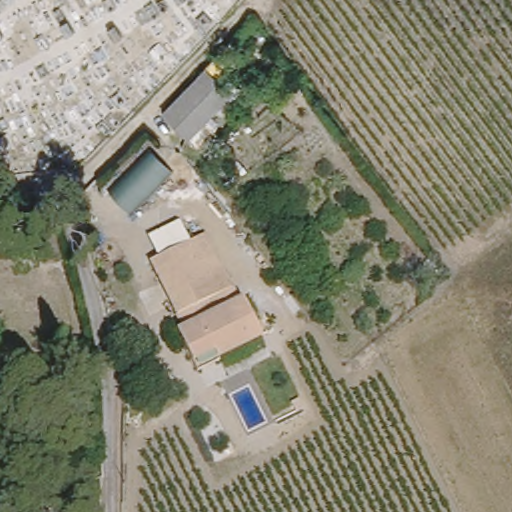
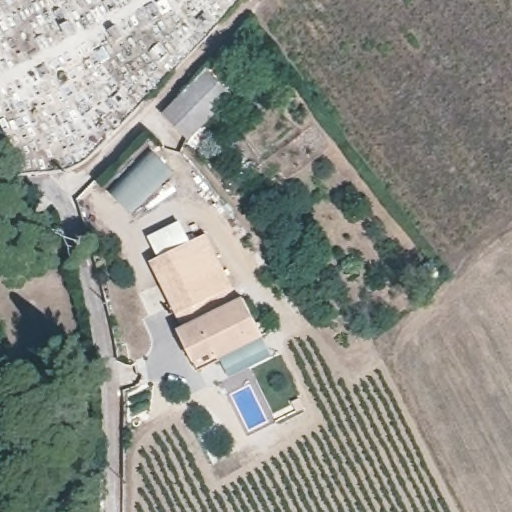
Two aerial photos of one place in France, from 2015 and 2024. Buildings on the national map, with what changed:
unchanged [(196,140),(167,114),(211,68),(239,96),(215,120),(226,130),(206,150),(196,140)]
unchanged [(174,171),(132,214),(108,188),(150,146),(174,171)]
unchanged [(199,370),(195,361),(179,328),(183,326),(151,261),(207,234),(234,287),(235,286),(240,298),(243,296),(262,335),(262,336),(219,357),(220,358),(199,370)]

